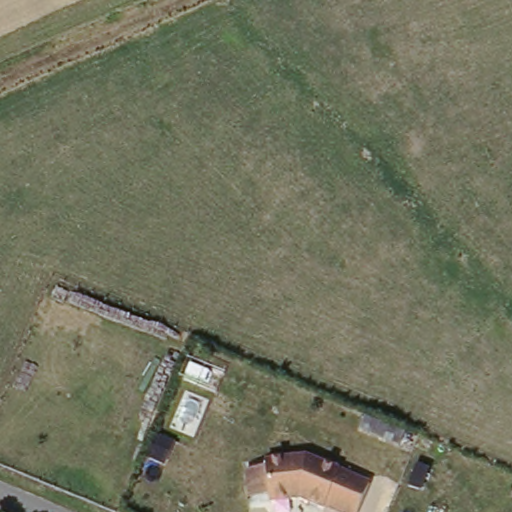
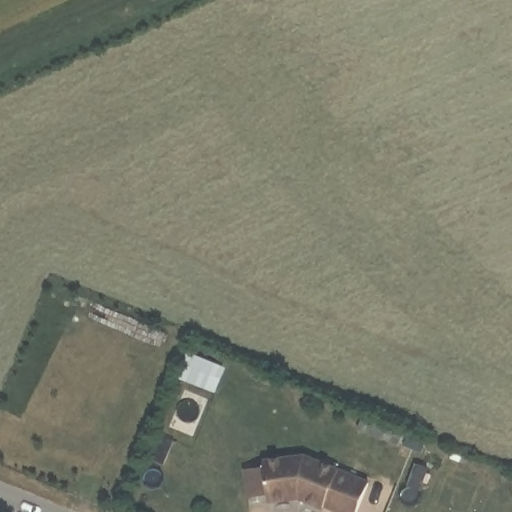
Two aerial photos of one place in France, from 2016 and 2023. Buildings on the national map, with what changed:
unchanged [(340,512),(294,497),(270,496),(246,497),(244,472),(268,466),(301,456),(340,469),(369,480),(356,512),(340,512)]

